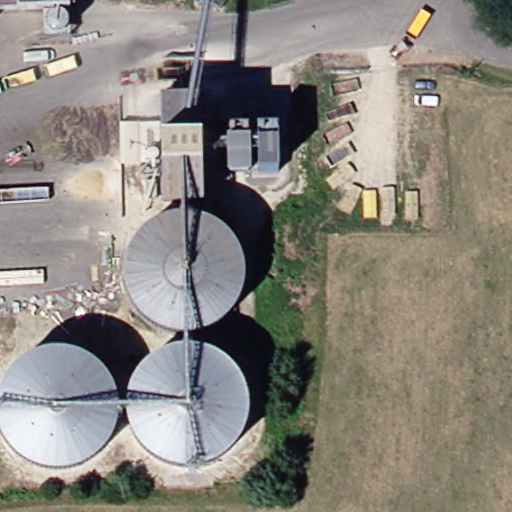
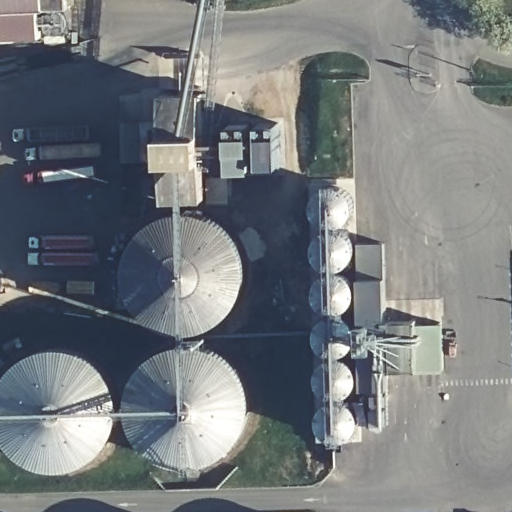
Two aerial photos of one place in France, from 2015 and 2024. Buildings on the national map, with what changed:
new [(43,7),(43,34),(0,37),(0,0),(70,0),(70,6),(43,7)]
unchanged [(203,97),(204,131),(162,134),(162,98),(203,97)]
new [(277,122),(279,170),(259,170),(257,123),(277,122)]
unchanged [(252,174),(231,175),(230,156),(205,157),(205,166),(163,166),(162,134),(204,131),(204,145),(230,144),(229,127),(251,126),(252,174)]
unchanged [(205,166),(206,205),(164,207),(163,166),(205,166)]
new [(353,214),(347,221),(340,226),(328,225),(320,224),(316,219),(311,209),(312,200),(317,193),(324,187),(333,186),(342,187),(348,192),(353,200),(353,214)]
unchanged [(138,236),(145,229),(154,223),(163,218),(173,215),(183,214),(193,214),(204,217),(213,220),(222,225),(230,232),(237,240),(242,249),(246,259),(248,269),(249,279),(248,289),(245,299),(240,309),(237,314),(230,322),(222,328),(213,334),(203,337),(193,339),(183,339),(173,338),(163,335),(148,327),(140,319),(133,312),(128,303),(125,293),(123,283),(123,273),(124,262),(128,252),(132,244),(138,236)]
new [(355,254),(353,260),(347,267),(338,270),(329,269),(323,267),(317,260),(313,252),(313,244),(317,234),(326,229),(337,228),(345,232),(352,238),(355,244),(355,254)]
new [(382,243),(384,320),(414,319),(414,324),(439,324),(440,370),(386,372),(387,424),(361,424),(355,244),(382,243)]
new [(355,290),(354,297),(352,302),(348,307),(343,310),(337,312),(331,311),(325,309),(320,304),(317,299),(316,287),(319,282),(323,277),(328,274),(334,273),(340,273),(346,275),(350,279),(354,284),(355,290)]
new [(356,334),(355,341),(352,347),(347,352),(341,354),(335,356),(328,354),(323,352),(318,347),(315,341),(315,328),(318,323),(323,318),(329,315),(335,314),(341,315),(347,318),(352,323),(355,329),(356,334)]
unchanged [(199,342),(208,343),(216,346),(224,349),(231,354),(238,360),(243,367),(248,374),(252,383),(254,391),(255,399),(255,409),(254,417),(252,426),(248,434),(243,441),(238,448),(231,454),(224,458),(216,462),(208,464),(199,466),(190,467),(182,466),(173,464),(165,460),(157,456),(151,451),(144,444),(139,437),(135,429),(132,421),(130,413),(130,404),(130,395),(132,387),(135,378),(139,371),(145,364),(151,357),(158,352),(165,348),(173,344),(182,342),(190,341),(199,342)]
unchanged [(83,348),(91,351),(98,356),(105,362),(110,369),(115,376),(119,384),(121,393),(122,401),(122,410),(121,419),(118,427),(115,435),(110,443),(105,449),(98,455),(91,460),(83,464),(75,467),(66,468),(57,468),(49,468),(40,465),(32,462),(24,458),(17,452),(11,446),(6,439),(2,431),(0,424),(0,387),(2,380),(6,372),(11,365),(18,359),(24,354),(32,349),(40,346),(49,344),(57,343),(62,343),(66,343),(75,344),(83,348)]
new [(357,378),(356,384),(353,389),(348,394),(342,397),(336,397),(329,396),(324,393),(320,388),(317,382),(318,369),(321,364),(326,359),(332,357),(338,356),(345,358),(350,361),(354,366),(357,372),(357,378)]
new [(358,422),(357,429),(353,434),(348,438),(342,441),(336,441),(330,439),(324,436),(320,431),(317,419),(319,412),(322,407),(327,403),(333,400),(340,399),(346,401),(352,404),(356,409),(358,416),(358,422)]

